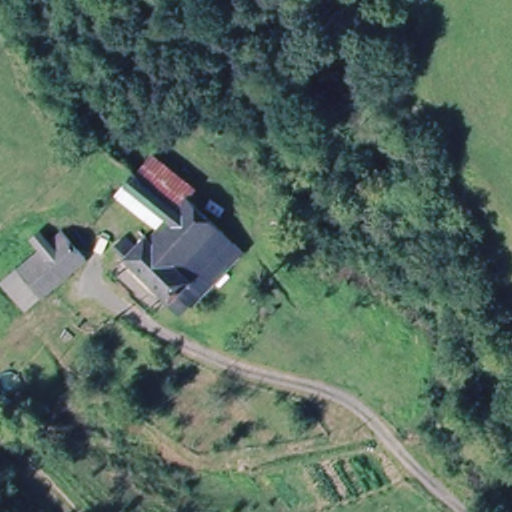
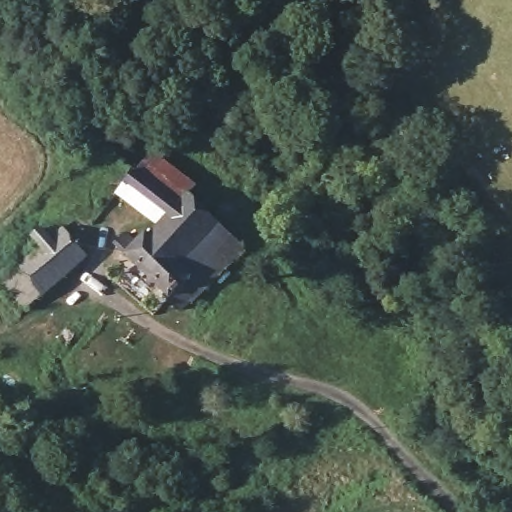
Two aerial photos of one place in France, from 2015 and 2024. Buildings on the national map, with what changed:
unchanged [(212,298),(196,282),(181,306),(124,257),(145,232),(155,240),(166,222),(130,187),(136,175),(146,180),(163,165),(200,191),(196,200),(249,251),(212,298)]
unchanged [(44,293),(19,269),(38,248),(30,238),(48,224),(56,234),(65,226),(90,251),(44,293)]

